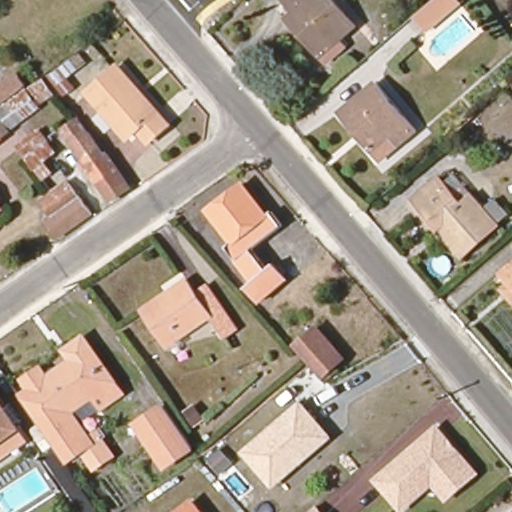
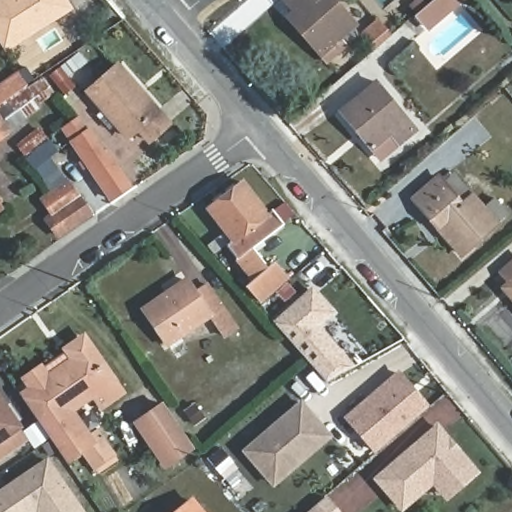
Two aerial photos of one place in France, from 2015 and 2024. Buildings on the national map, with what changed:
new [(0,0),(69,0),(74,9),(8,50),(0,38),(0,0)]
unchanged [(285,0),(332,0),(355,26),(321,56),(295,27),(287,18),(294,12),(285,0)]
unchanged [(458,0),(428,26),(417,13),(432,0),(458,0)]
unchanged [(62,96),(49,77),(59,69),(60,70),(80,54),(86,61),(66,78),(74,88),(62,96)]
unchanged [(19,71),(35,60),(42,72),(26,84),(19,71)]
unchanged [(159,111),(170,124),(151,140),(141,128),(130,139),(118,126),(111,132),(100,116),(105,111),(91,93),(121,66),(141,91),(159,111)]
unchanged [(23,86),(0,102),(0,84),(15,74),(23,86)]
unchanged [(0,110),(25,92),(32,87),(41,82),(43,82),(50,93),(33,104),(35,107),(9,127),(0,113),(0,110)]
unchanged [(345,107),(375,82),(414,129),(398,143),(390,133),(370,149),(360,136),(340,112),(345,107)]
unchanged [(62,129),(75,122),(83,135),(86,132),(102,157),(106,154),(128,189),(108,201),(62,129)]
unchanged [(0,138),(0,123),(7,132),(0,138)]
unchanged [(47,177),(40,166),(37,168),(21,147),(41,131),(58,152),(50,159),(58,170),(47,177)]
unchanged [(438,234),(439,231),(412,200),(437,178),(443,185),(452,177),(470,197),(472,196),(482,209),(494,198),(507,215),(496,223),(496,224),(468,249),(459,257),(438,234)]
unchanged [(245,287),(253,280),(226,246),(231,244),(207,208),(243,182),(276,227),(250,248),(265,270),(270,265),(285,281),(260,302),(245,287)]
unchanged [(43,219),(49,216),(41,201),(66,184),(87,216),(55,237),(43,219)]
unchanged [(0,210),(0,208),(1,210),(0,210)]
unchanged [(502,291),(510,285),(500,273),(512,264),(512,301),(502,291)]
unchanged [(162,295),(163,297),(185,282),(193,292),(206,285),(235,328),(224,336),(209,313),(166,343),(142,308),(162,295)]
new [(353,366),(326,381),(273,322),(312,287),(335,312),(320,327),(353,366)]
demolished [(315,327),(343,357),(320,377),(310,366),(303,358),(292,347),(315,327)]
unchanged [(100,406),(92,392),(71,407),(65,411),(43,380),(51,374),(73,361),(65,350),(80,338),(118,392),(100,406)]
unchanged [(113,455),(95,467),(84,452),(69,462),(19,392),(26,388),(19,377),(41,363),(51,374),(43,380),(65,411),(71,407),(91,435),(97,431),(113,455)]
new [(374,453),(342,417),(398,371),(429,406),(374,453)]
unchanged [(165,469),(133,422),(164,402),(196,450),(165,469)]
unchanged [(195,404),(204,416),(194,423),(185,411),(195,404)]
unchanged [(295,463),(272,483),(245,451),(299,405),(322,432),(326,437),(295,463)]
unchanged [(0,435),(0,406),(13,426),(0,435)]
unchanged [(446,497),(438,488),(432,481),(401,507),(375,477),(436,426),(446,438),(453,446),(467,463),(476,473),(446,497)]
unchanged [(0,462),(0,443),(22,428),(29,442),(0,462)]
demolished [(97,512),(78,512),(43,461),(56,452),(97,512)]
new [(33,510),(31,512),(0,512),(0,491),(43,460),(80,512),(35,512),(33,510)]
unchanged [(192,502),(199,512),(180,512),(192,502)]
unchanged [(321,512),(305,512),(314,504),(321,512)]

